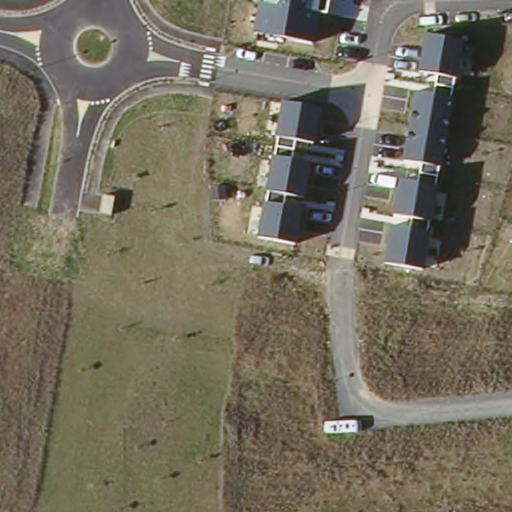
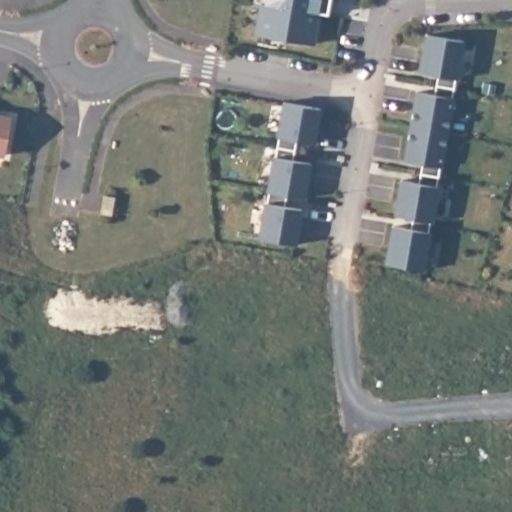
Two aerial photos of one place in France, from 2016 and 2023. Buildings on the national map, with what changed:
unchanged [(326,13),(320,12),(315,44),(255,34),(260,1),(254,1),(254,0),(329,0),(326,13)]
unchanged [(384,263),(389,225),(410,229),(411,219),(393,216),(399,179),(417,183),(421,165),(403,163),(414,91),(433,95),(437,75),(418,72),(425,35),(462,41),(422,268),(384,263)]
unchanged [(320,107),(314,143),(296,140),(292,159),(310,162),(303,198),(285,194),(283,207),(301,212),(296,244),(258,237),(282,102),(320,107)]
new [(10,158),(0,156),(0,118),(17,121),(10,158)]

